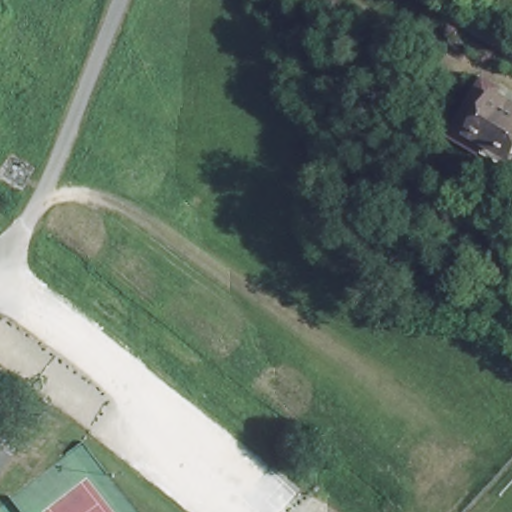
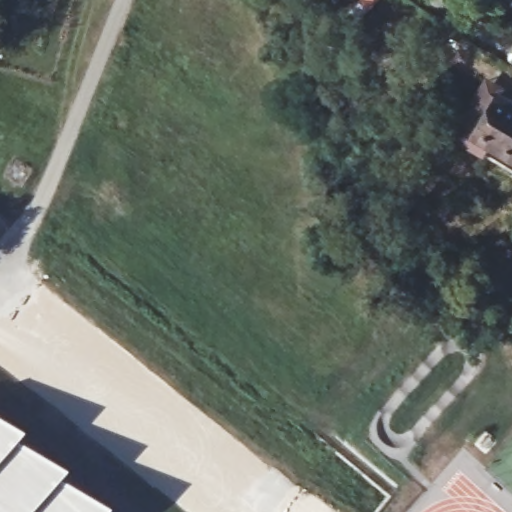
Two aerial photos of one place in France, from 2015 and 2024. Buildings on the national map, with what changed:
unchanged [(512,148),(489,133),(479,147),(478,148),(468,140),(465,139),(453,131),(462,116),(479,88),(482,83),(496,92),(512,103),(512,148)]
new [(0,512),(0,413),(121,512),(0,512)]

